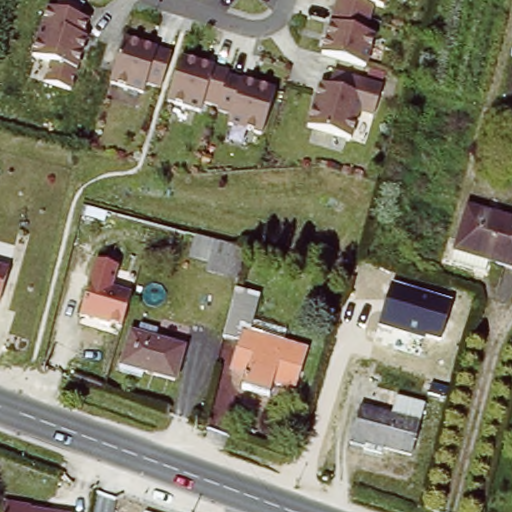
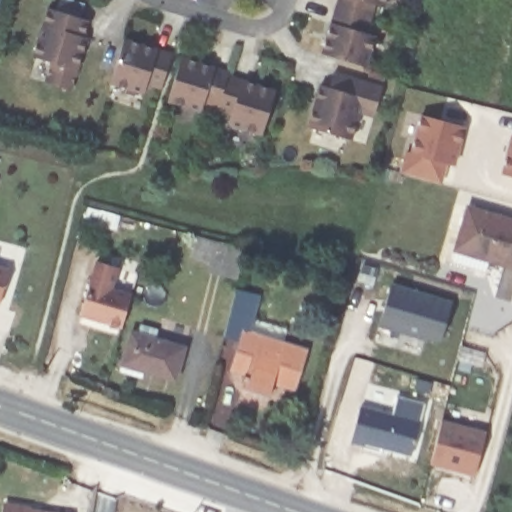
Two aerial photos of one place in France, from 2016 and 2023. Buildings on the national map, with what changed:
unchanged [(81,33),(87,36),(72,90),(42,79),(47,61),(30,55),(41,7),(55,12),(57,0),(70,0),(87,4),(81,33)]
unchanged [(334,0),(386,0),(385,4),(373,1),(366,30),(375,34),(367,65),(318,54),(334,0)]
unchanged [(171,53),(161,87),(145,84),(142,92),(108,82),(121,38),(171,53)]
unchanged [(273,85),(261,130),(215,115),(217,107),(204,104),(199,114),(169,105),(184,56),(273,85)]
unchanged [(380,85),(371,115),(360,112),(352,137),(304,122),(315,82),(325,84),(328,72),(380,85)]
new [(454,165),(445,162),(441,182),(400,172),(405,151),(409,152),(420,114),(464,126),(454,165)]
new [(510,134),(512,134),(512,177),(500,174),(510,134)]
unchanged [(491,257),(486,272),(452,261),(468,203),(512,216),(512,264),(491,257)]
unchanged [(239,277),(209,267),(212,257),(192,251),(198,232),(217,237),(247,246),(239,277)]
unchanged [(9,268),(2,302),(0,301),(0,265),(9,268)]
unchanged [(129,292),(117,332),(77,318),(86,281),(129,292)]
unchanged [(391,285),(452,301),(442,341),(425,337),(424,340),(379,327),(391,285)]
unchanged [(236,287),(260,295),(253,321),(292,332),(290,342),(309,347),(301,383),(277,377),(272,396),(248,388),(252,371),(236,366),(243,338),(224,333),(236,287)]
unchanged [(133,334),(136,325),(153,331),(152,339),(180,347),(171,381),(117,366),(126,332),(133,334)]
unchanged [(393,417),(403,384),(429,393),(412,457),(366,444),(364,449),(351,445),(362,408),(393,417)]
new [(430,464),(442,421),(485,432),(474,476),(430,464)]
unchanged [(43,512),(0,512),(0,505),(43,512)]

